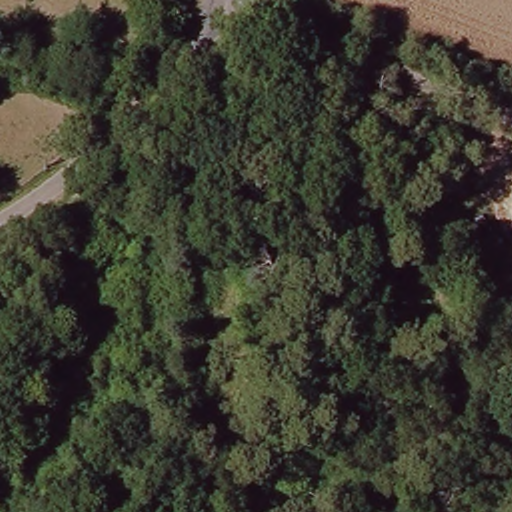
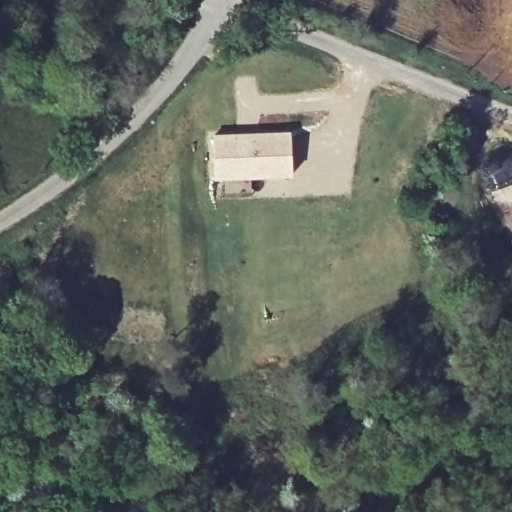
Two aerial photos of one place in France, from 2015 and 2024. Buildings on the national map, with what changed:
new [(212,135),(290,131),(292,176),(249,178),(249,196),(219,196),(219,179),(215,180),(212,135)]

